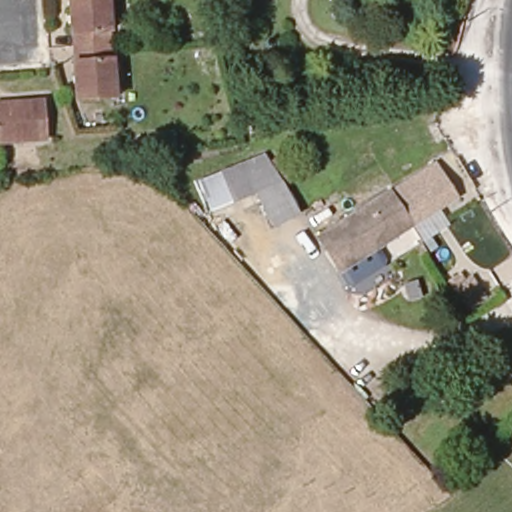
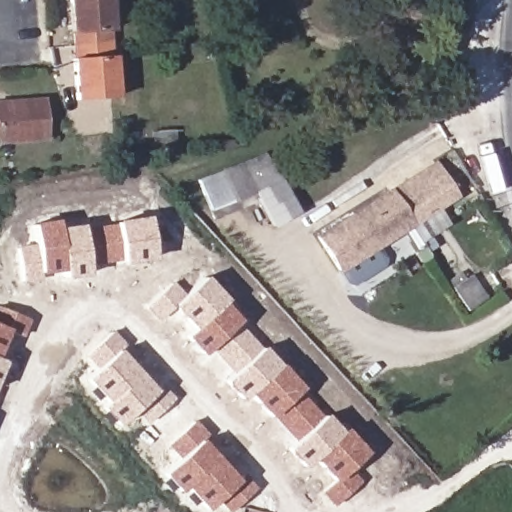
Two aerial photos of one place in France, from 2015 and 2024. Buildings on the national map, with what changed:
unchanged [(110,28),(102,28),(103,42),(105,56),(112,56),(115,93),(76,97),(73,59),(76,59),(75,44),(74,29),(71,30),(69,0),(108,0),(110,28)]
unchanged [(51,132),(1,137),(0,129),(0,98),(48,95),(51,132)]
unchanged [(367,148),(352,150),(351,144),(344,145),(343,139),(366,137),(367,148)]
unchanged [(302,171),(286,179),(303,214),(273,225),(254,192),(224,200),(211,174),(290,145),(302,171)]
unchanged [(436,159),(457,192),(408,223),(387,192),(436,159)]
unchanged [(347,280),(346,277),(340,268),(317,237),(387,192),(408,223),(375,245),(382,253),(384,255),(347,280)]
new [(34,243),(32,224),(57,220),(58,229),(81,225),(81,227),(147,217),(154,259),(121,263),(120,259),(86,263),(87,275),(61,278),(60,271),(39,273),(40,280),(21,281),(16,247),(34,243)]
new [(350,468),(361,479),(332,505),(319,492),(331,480),(312,460),(305,467),(287,447),(293,441),(268,417),(246,394),(241,399),(224,381),(230,375),(207,350),(202,355),(185,337),(192,329),(172,308),(157,321),(145,308),(172,282),(186,295),(205,278),(226,300),(222,303),(237,320),(236,322),(261,348),(278,367),(280,365),(302,388),(325,415),(341,433),(345,429),(366,453),(350,468)]
new [(21,337),(7,331),(0,347),(0,309),(28,321),(21,337)]
new [(174,399),(146,423),(132,412),(117,425),(101,408),(104,404),(84,381),(92,372),(82,357),(112,331),(125,345),(118,350),(152,387),(161,384),(174,399)]
new [(0,371),(0,360),(4,362),(0,371)]
new [(237,479),(242,475),(255,488),(228,512),(223,512),(213,502),(204,509),(184,488),(179,492),(162,473),(178,459),(167,445),(195,419),(207,434),(200,440),(237,479)]

